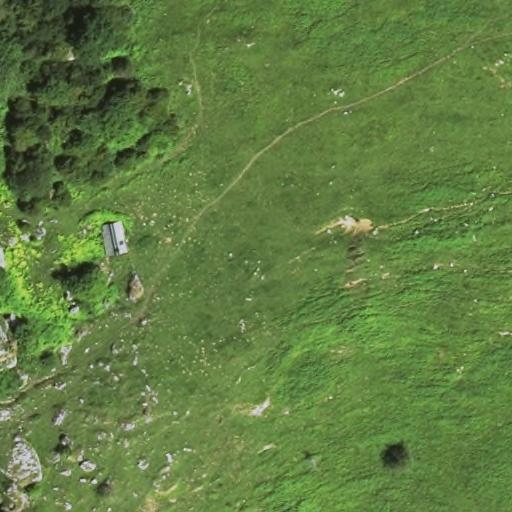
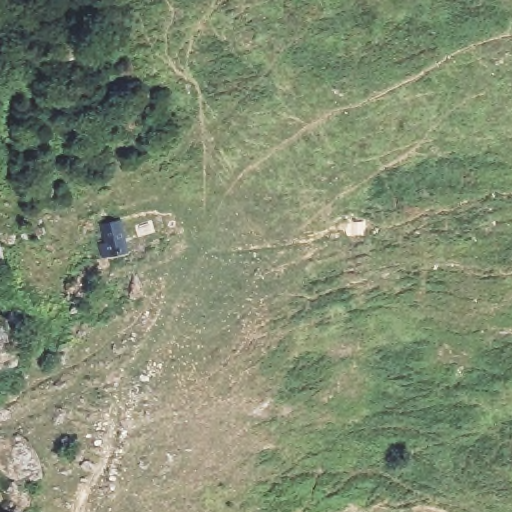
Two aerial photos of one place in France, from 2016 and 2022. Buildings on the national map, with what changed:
unchanged [(126,239),(129,251),(105,256),(97,221),(121,217),(126,239)]

